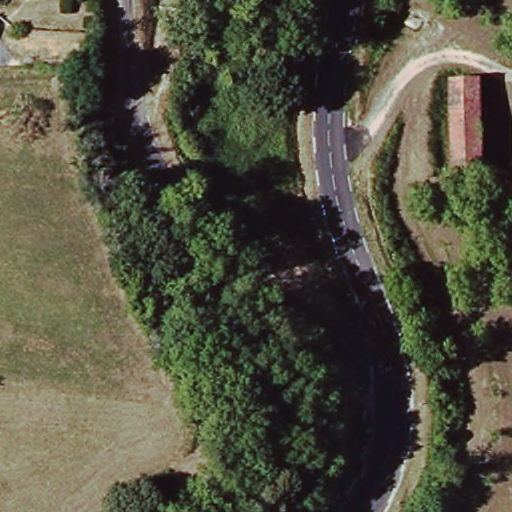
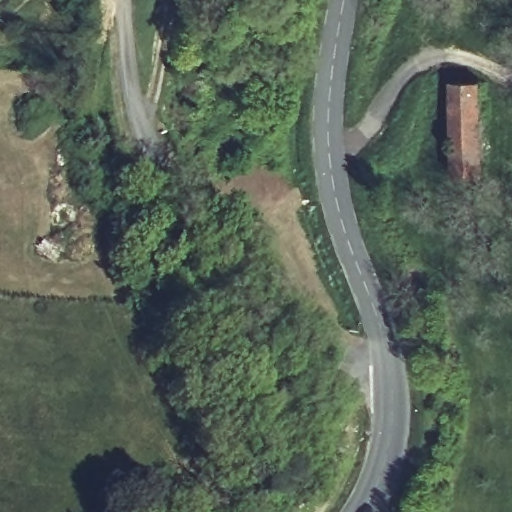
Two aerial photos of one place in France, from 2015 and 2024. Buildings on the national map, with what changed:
unchanged [(450,81),(465,80),(481,82),(483,173),(453,174),(450,81)]

